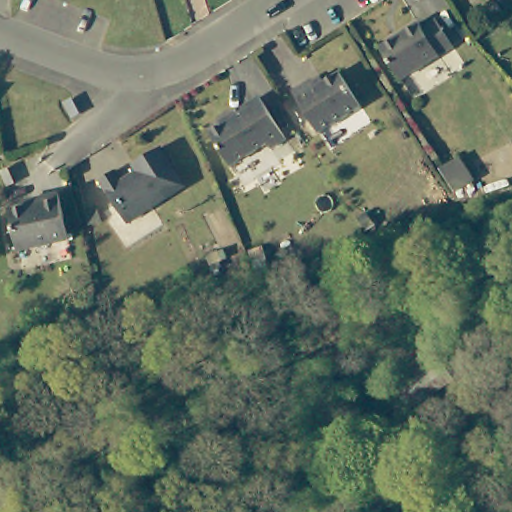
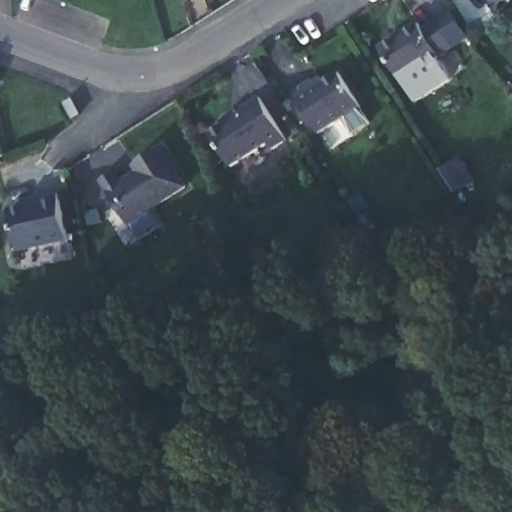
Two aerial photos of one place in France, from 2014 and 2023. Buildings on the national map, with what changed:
unchanged [(377,49),(417,24),(420,30),(432,22),(451,46),(408,74),(398,80),(393,72),(377,49)]
unchanged [(322,89),(346,75),(367,109),(323,136),(295,93),(318,80),(322,89)]
unchanged [(288,137),(276,146),(272,138),(232,160),(213,127),(232,114),(230,111),(249,101),(252,105),(264,98),(288,137)]
unchanged [(121,185),(139,174),(136,169),(162,151),(187,193),(128,230),(99,185),(116,175),(121,185)]
unchanged [(70,244),(19,256),(12,216),(45,208),(44,203),(62,200),(70,244)]
unchanged [(463,384),(405,418),(382,377),(440,343),(463,384)]
unchanged [(0,499),(0,476),(7,498),(0,499)]

